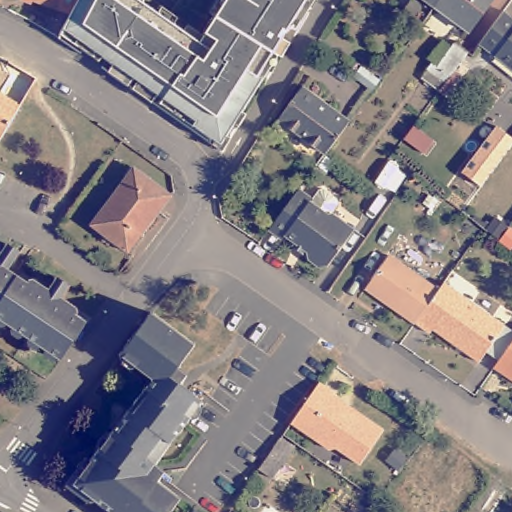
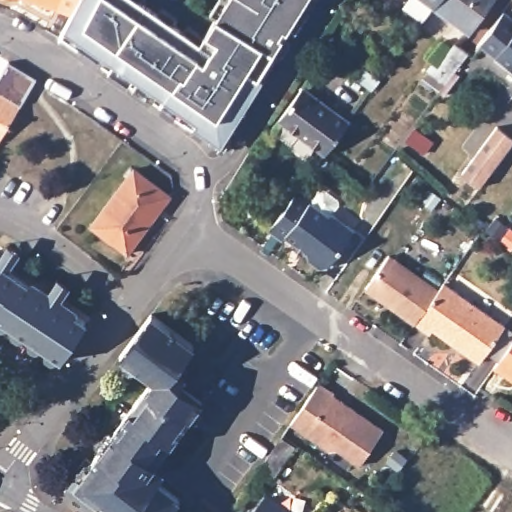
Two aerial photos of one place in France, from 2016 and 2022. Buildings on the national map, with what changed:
unchanged [(85,0),(143,0),(200,40),(225,0),(315,0),(221,146),(65,36),(76,17),(85,0)]
unchanged [(439,0),(433,8),(423,0),(439,0)]
unchanged [(433,8),(439,0),(491,0),(467,32),(433,8)]
unchanged [(490,52),(512,21),(512,69),(490,52)]
unchanged [(425,71),(430,63),(436,67),(454,44),(467,54),(444,85),(425,71)]
unchanged [(280,121),(305,88),(352,123),(327,156),(280,121)]
unchanged [(0,139),(0,98),(19,109),(0,139)]
unchanged [(505,146),(494,137),(512,114),(512,137),(505,146)]
unchanged [(169,196),(128,253),(90,226),(130,169),(169,196)]
unchanged [(296,243),(287,236),(285,240),(271,230),(301,190),(315,200),(322,191),(326,190),(340,200),(340,204),(333,214),(355,230),(329,264),(318,266),(310,259),(308,251),(305,256),(293,247),(296,243)]
unchanged [(18,257),(13,264),(8,260),(12,253),(18,257)]
unchanged [(363,287),(387,253),(437,289),(412,323),(363,287)]
unchanged [(68,359),(0,314),(0,261),(93,323),(68,359)]
unchanged [(501,325),(475,362),(429,328),(426,333),(412,323),(437,289),(443,281),(501,325)]
unchanged [(70,291),(65,298),(59,294),(63,287),(70,291)]
unchanged [(164,483),(166,485),(187,502),(180,512),(113,512),(79,487),(89,472),(84,468),(91,458),(96,462),(155,379),(122,355),(153,313),(195,346),(180,368),(189,375),(181,385),(205,403),(188,423),(158,465),(170,474),(164,483)]
unchanged [(497,372),(512,351),(512,382),(497,372)]
unchanged [(317,385),(332,394),(331,397),(382,430),(357,464),(335,449),(327,451),(289,426),(317,385)]
unchanged [(291,458),(275,481),(261,471),(277,448),(291,458)]

